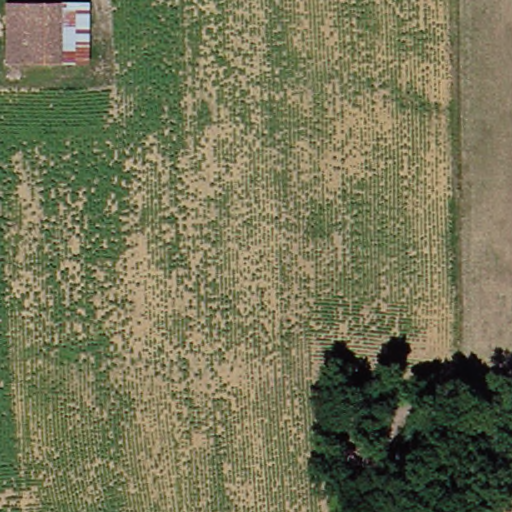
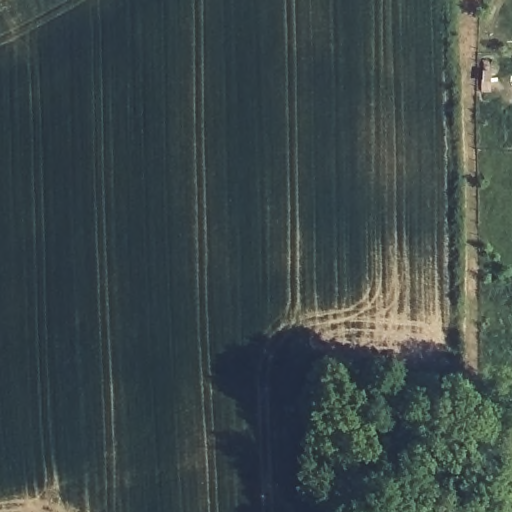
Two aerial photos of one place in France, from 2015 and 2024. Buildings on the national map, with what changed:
demolished [(93,64),(10,63),(11,5),(95,4),(93,64)]

